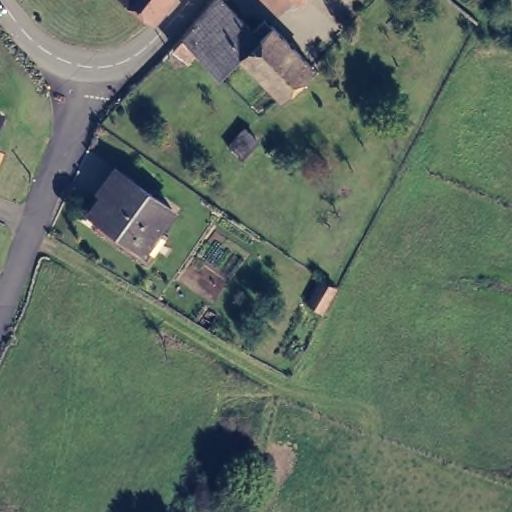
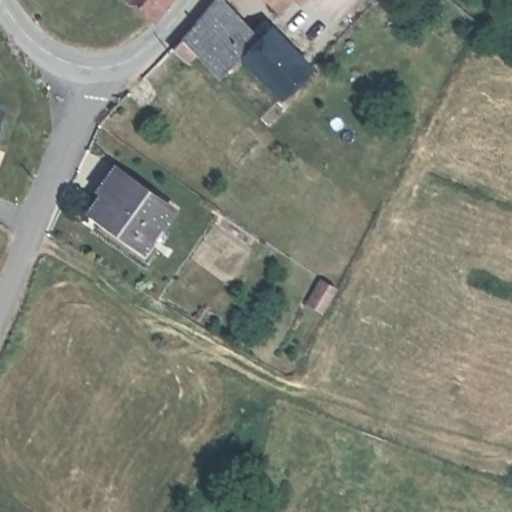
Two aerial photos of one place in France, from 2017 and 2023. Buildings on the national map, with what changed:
unchanged [(155,19),(131,0),(171,0),(155,19)]
unchanged [(253,32),(248,38),(252,43),(270,26),(318,73),(287,102),(247,61),(223,37),(213,43),(196,27),(219,0),(221,0),(253,32)]
unchanged [(285,12),(271,0),(296,0),(285,12)]
unchanged [(247,61),(228,79),(201,57),(183,76),(168,63),(183,45),(189,37),(196,27),(213,43),(223,37),(247,61)]
unchanged [(0,141),(0,106),(11,110),(0,141)]
unchanged [(108,188),(105,185),(119,165),(177,205),(151,245),(96,208),(108,188)]
unchanged [(338,292),(326,317),(310,307),(324,282),(338,291),(338,292)]

